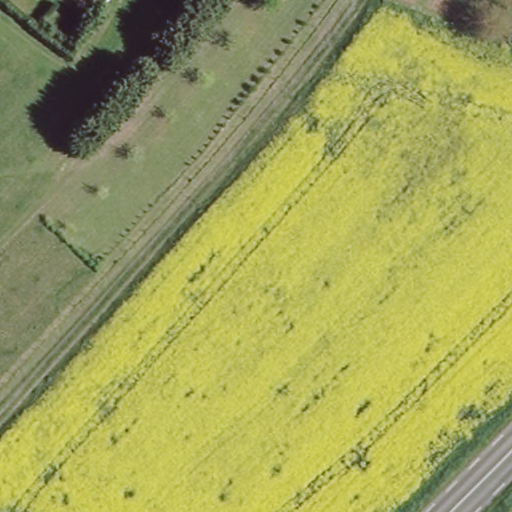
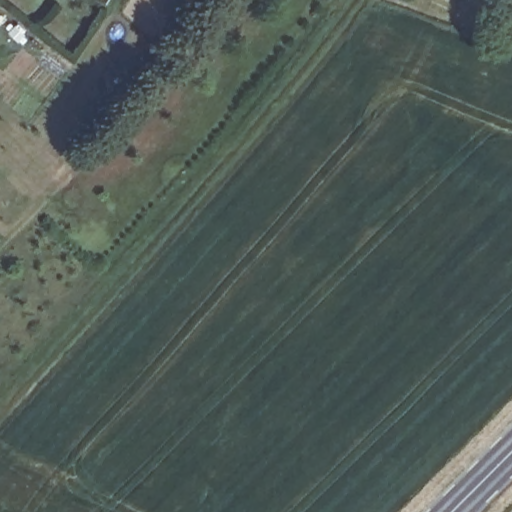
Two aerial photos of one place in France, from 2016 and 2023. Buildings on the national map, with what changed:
[]

